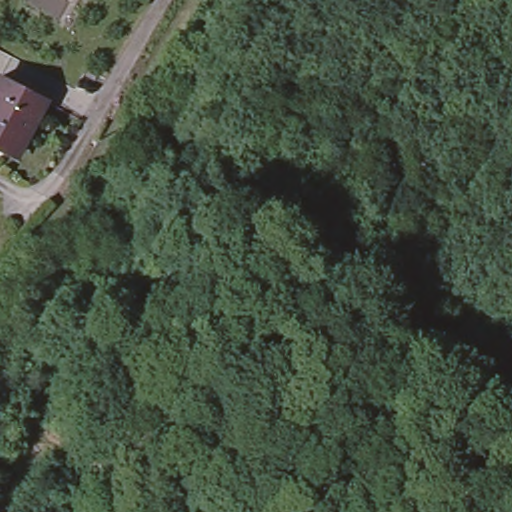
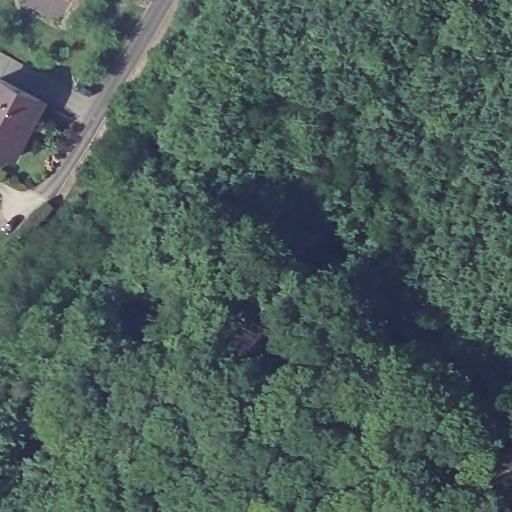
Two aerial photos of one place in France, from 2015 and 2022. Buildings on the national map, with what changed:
unchanged [(26,134),(30,136),(19,157),(0,148),(0,82),(1,80),(42,101),(26,134)]

